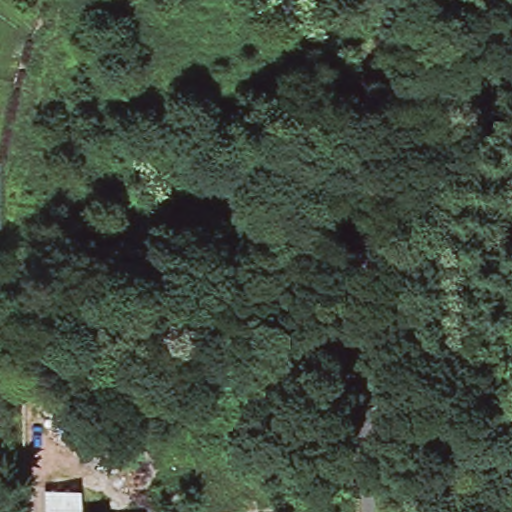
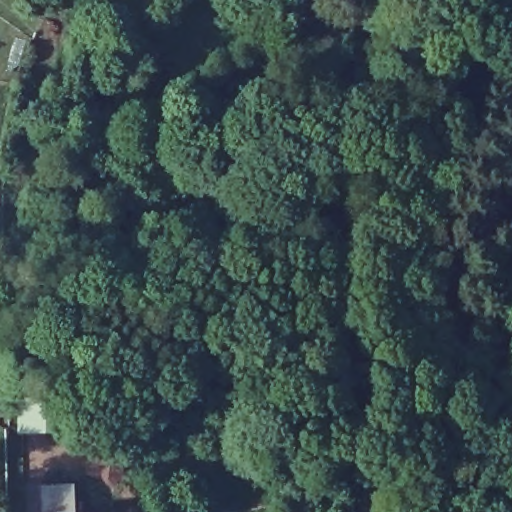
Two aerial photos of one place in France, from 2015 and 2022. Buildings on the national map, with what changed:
unchanged [(44,488),(42,464),(77,462),(79,489),(80,501),(125,499),(137,498),(138,512),(45,512),(45,502),(44,488)]

